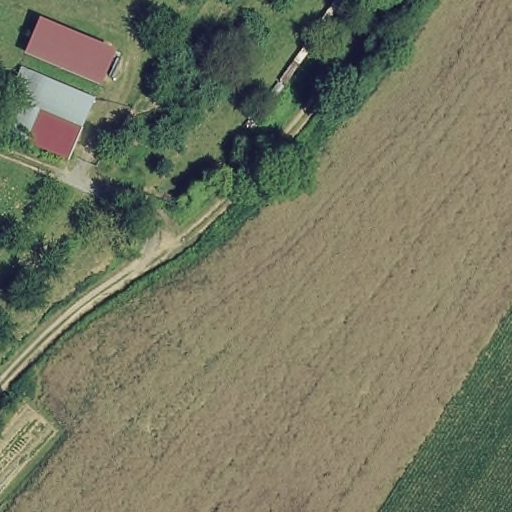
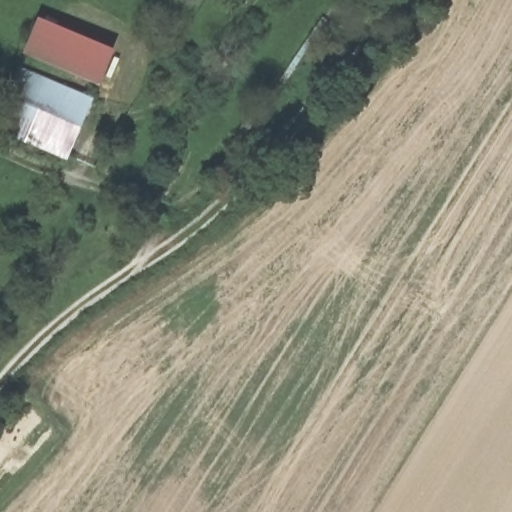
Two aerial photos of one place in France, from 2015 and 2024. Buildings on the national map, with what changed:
unchanged [(25,57),(42,20),(116,48),(102,86),(25,57)]
unchanged [(3,132),(22,70),(96,99),(71,161),(3,132)]

